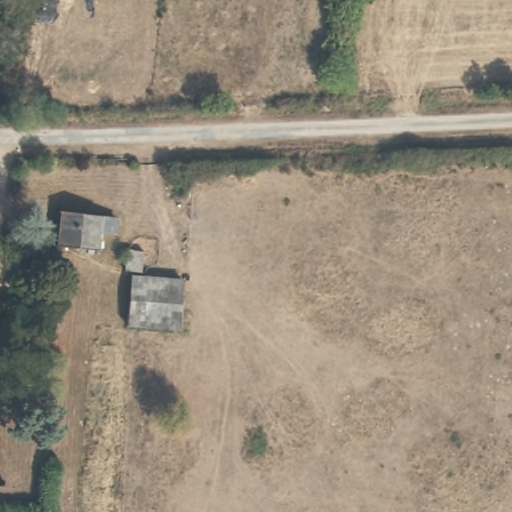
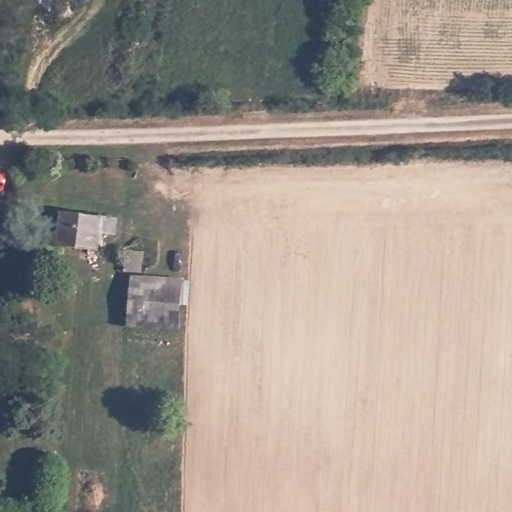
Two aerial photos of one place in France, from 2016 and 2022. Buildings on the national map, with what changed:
unchanged [(91,219),(91,222),(107,222),(106,238),(91,237),(88,257),(48,254),(51,217),(91,219)]
unchanged [(137,257),(134,279),(118,277),(121,256),(137,257)]
unchanged [(188,299),(185,326),(133,318),(135,294),(188,299)]

